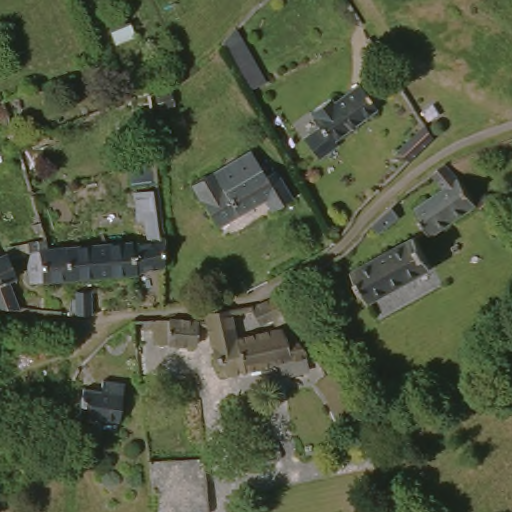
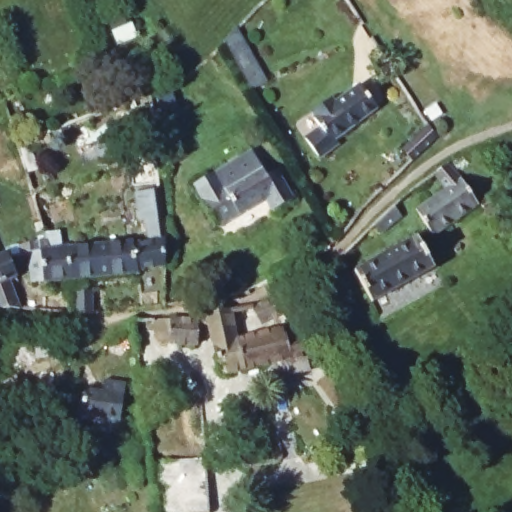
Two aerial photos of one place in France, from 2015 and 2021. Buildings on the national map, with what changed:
unchanged [(269,81),(254,90),(226,41),(239,27),(269,81)]
unchanged [(335,135),(339,140),(319,154),(305,132),(321,122),(315,114),(318,112),(313,105),(333,92),(336,96),(362,79),(380,105),(335,135)]
unchanged [(428,102),(434,112),(423,119),(416,109),(428,102)]
unchanged [(404,141),(421,124),(429,136),(414,152),(404,141)]
unchanged [(267,169),(276,162),(294,192),(274,205),(268,195),(220,222),(196,180),(209,172),(216,168),(223,180),(261,158),(267,169)]
unchanged [(431,230),(414,203),(446,182),(436,164),(444,159),(459,174),(474,197),(487,190),(498,202),(489,209),(480,200),(431,230)]
unchanged [(394,214),(374,232),(366,222),(384,204),(394,214)]
unchanged [(137,235),(138,239),(152,236),(151,210),(166,209),(168,233),(168,262),(140,265),(140,268),(74,275),(72,244),(137,235)]
unchanged [(35,278),(34,249),(35,248),(33,237),(48,232),(51,244),(53,245),(71,244),(72,244),(74,275),(35,278)]
unchanged [(426,266),(364,302),(354,285),(350,277),(346,270),(409,235),(426,266)]
unchanged [(24,308),(4,315),(0,305),(0,253),(6,250),(24,308)]
unchanged [(274,314),(257,323),(246,306),(254,303),(268,297),(278,290),(284,299),(274,306),(281,315),(276,318),(274,314)]
unchanged [(241,335),(289,324),(291,335),(299,333),(306,344),(312,365),(288,370),(284,355),(223,370),(211,317),(208,302),(226,298),(229,305),(234,305),(241,335)]
unchanged [(201,339),(161,336),(159,335),(158,331),(158,328),(158,315),(203,317),(201,339)]
unchanged [(332,419),(323,402),(309,383),(313,380),(323,373),(326,377),(336,389),(340,397),(347,413),(332,419)]
unchanged [(94,415),(79,413),(83,387),(99,390),(101,377),(124,381),(115,435),(91,430),(94,415)]
unchanged [(351,421),(349,417),(364,411),(374,436),(361,442),(359,442),(351,421)]
unchanged [(206,453),(211,501),(211,506),(209,510),(208,512),(158,512),(151,460),(206,453)]

